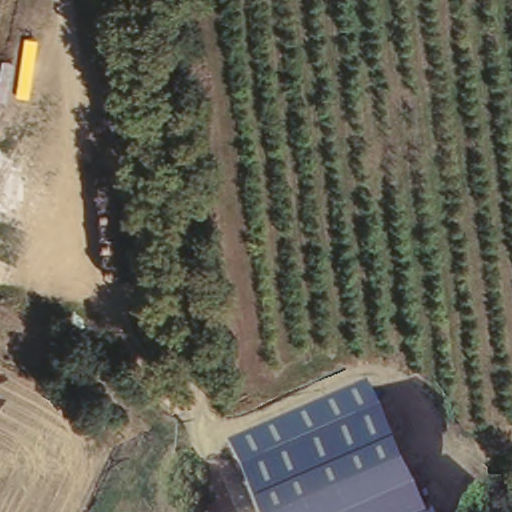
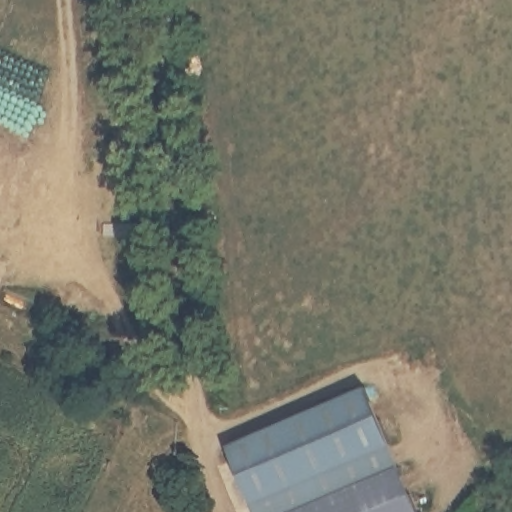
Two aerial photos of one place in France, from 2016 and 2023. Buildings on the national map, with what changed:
unchanged [(257,512),(228,445),(368,386),(399,465),(296,512),(257,512)]
unchanged [(420,512),(296,512),(399,465),(420,512)]

